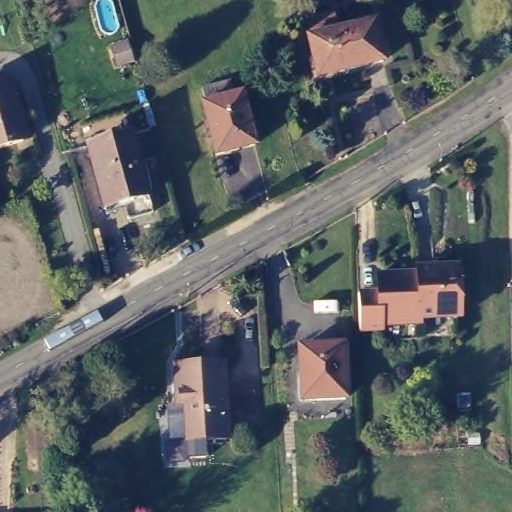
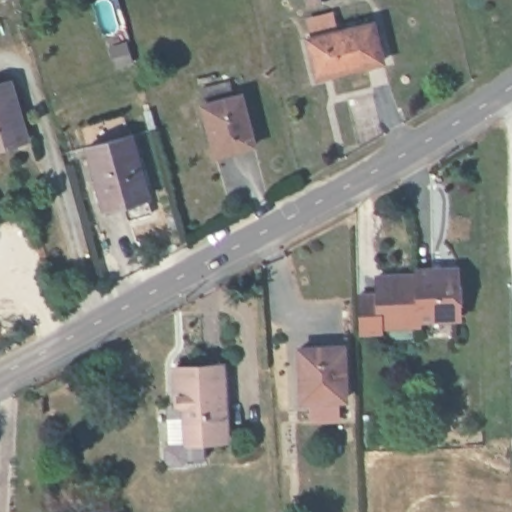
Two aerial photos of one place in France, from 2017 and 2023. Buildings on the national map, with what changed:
unchanged [(309,38),(356,27),(376,21),(387,65),(367,70),(320,81),(309,38)]
unchanged [(0,84),(7,82),(26,140),(0,149),(0,84)]
unchanged [(234,84),(237,100),(246,98),(261,150),(222,161),(207,109),(210,108),(207,92),(234,84)]
unchanged [(155,216),(130,222),(127,205),(105,209),(90,147),(137,134),(155,216)]
unchanged [(357,296),(377,295),(377,277),(417,275),(417,270),(456,268),(459,318),(419,320),(419,325),(380,327),(380,332),(360,333),(357,296)]
unchanged [(305,403),(304,349),(345,349),(348,401),(305,403)]
unchanged [(177,410),(175,372),(224,372),(226,447),(186,448),(177,448),(177,410)]

